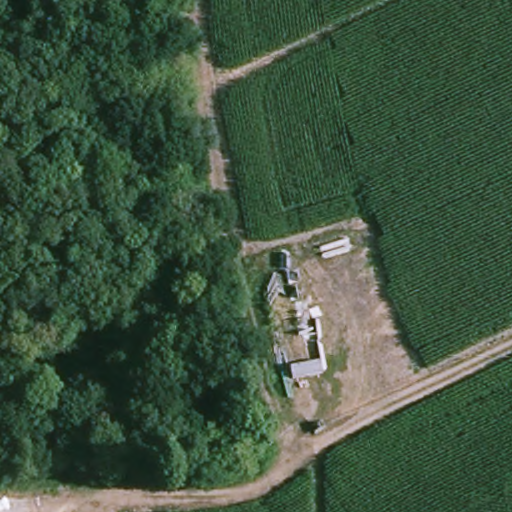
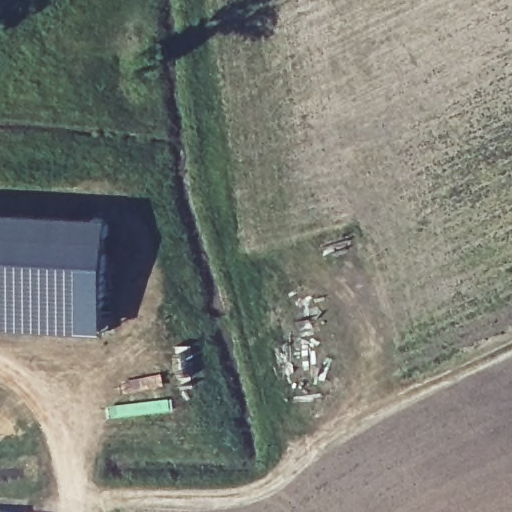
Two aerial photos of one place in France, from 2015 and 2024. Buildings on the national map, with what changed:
new [(100,332),(0,326),(0,212),(107,219),(100,332)]

